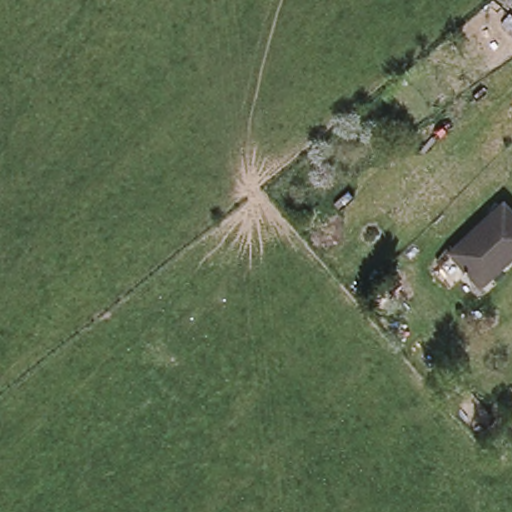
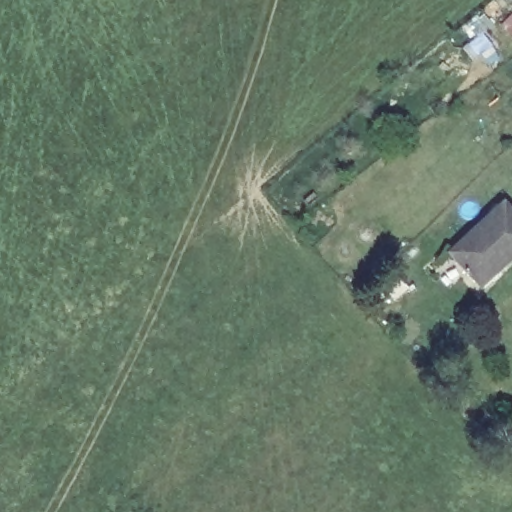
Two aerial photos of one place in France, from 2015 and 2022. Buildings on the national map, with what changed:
unchanged [(512,259),(501,268),(495,262),(470,283),(445,254),(501,205),(512,218),(512,259)]

